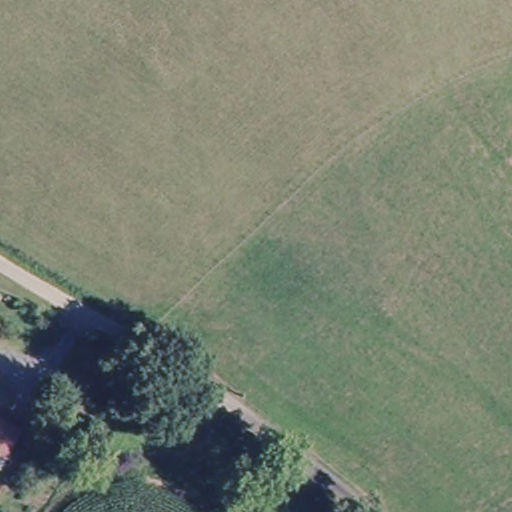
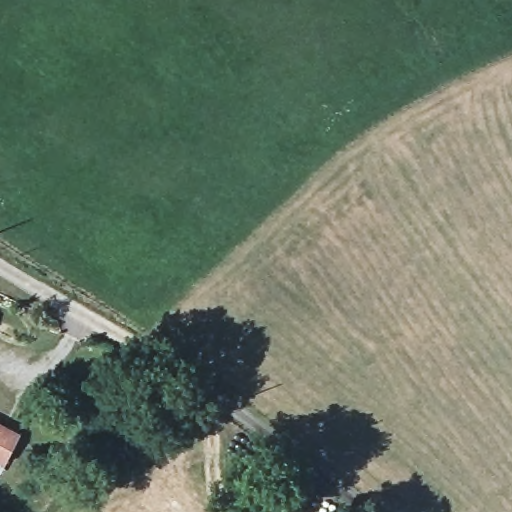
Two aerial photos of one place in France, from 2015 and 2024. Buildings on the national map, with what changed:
unchanged [(5,458),(0,456),(0,424),(18,433),(5,458)]

